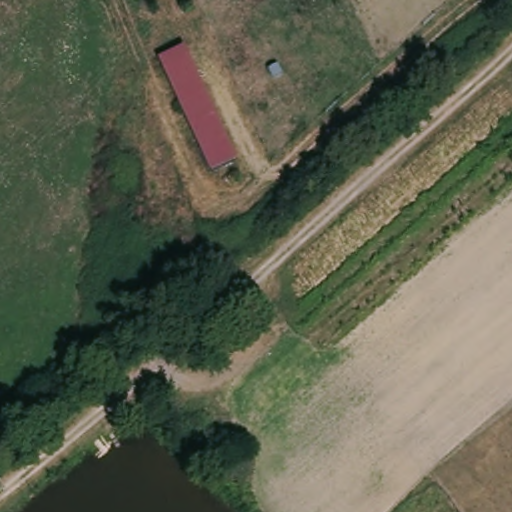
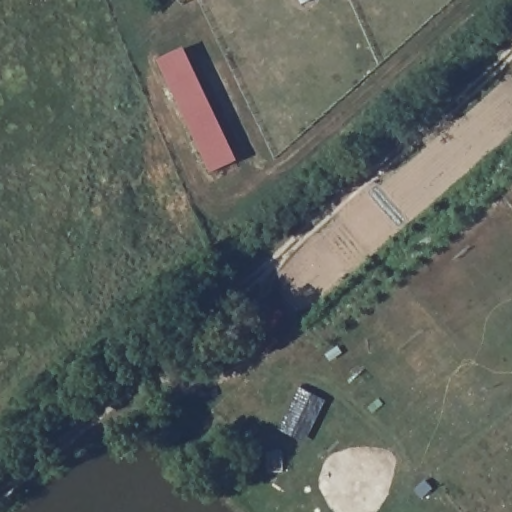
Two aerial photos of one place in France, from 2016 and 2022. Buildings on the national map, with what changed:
unchanged [(185,48),(238,159),(211,171),(159,61),(185,48)]

